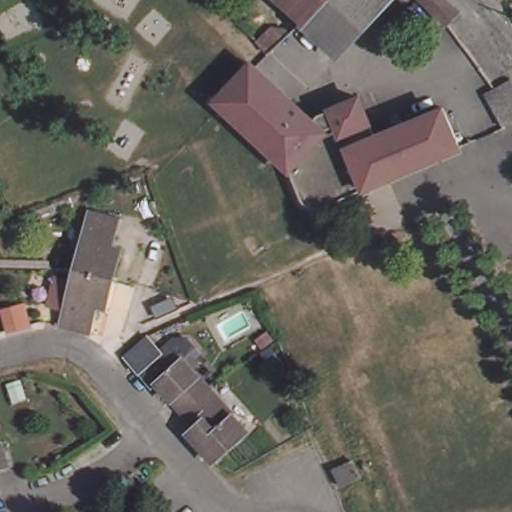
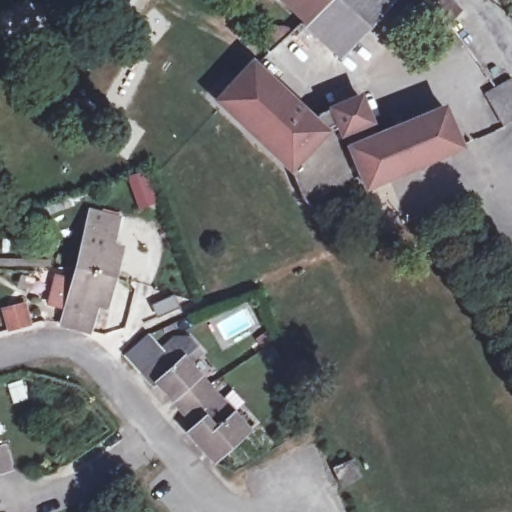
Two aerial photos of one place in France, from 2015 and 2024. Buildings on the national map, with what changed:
unchanged [(281,0),(320,0),(303,20),(281,0)]
unchanged [(303,20),(320,0),(382,0),(337,50),(303,20)]
unchanged [(447,25),(422,0),(451,0),(461,10),(447,25)]
unchanged [(258,40),(273,26),(286,26),(290,31),(270,51),(258,40)]
unchanged [(314,124),(318,129),(324,123),(335,119),(333,113),(361,101),(377,140),(350,151),(364,188),(354,192),(356,197),(325,210),(324,211),(323,211),(322,211),(321,211),(319,212),(318,212),(317,212),(316,212),(315,211),(314,211),(313,211),(311,210),(310,210),(309,209),(308,209),(307,208),(307,207),(306,207),(305,206),(304,205),(304,204),(303,203),(302,202),(302,201),(291,173),(218,105),(253,67),(314,124)]
unchanged [(485,94),(512,78),(512,119),(502,125),(485,94)]
unchanged [(396,132),(392,122),(401,118),(406,128),(445,111),(462,151),(366,193),(364,188),(350,151),(377,140),(396,132)]
unchanged [(118,243),(127,246),(120,275),(112,305),(103,303),(96,329),(68,322),(72,306),(55,302),(63,273),(79,278),(83,266),(97,210),(125,217),(118,243)]
unchanged [(219,461),(217,459),(195,435),(202,428),(189,413),(164,386),(161,389),(132,358),(133,357),(150,342),(153,339),(167,354),(180,342),(195,341),(207,354),(194,365),(215,389),(254,433),(220,463),(219,461)]
unchanged [(0,472),(0,448),(8,447),(14,468),(0,472)]
unchanged [(335,468),(354,460),(362,477),(342,485),(335,468)]

